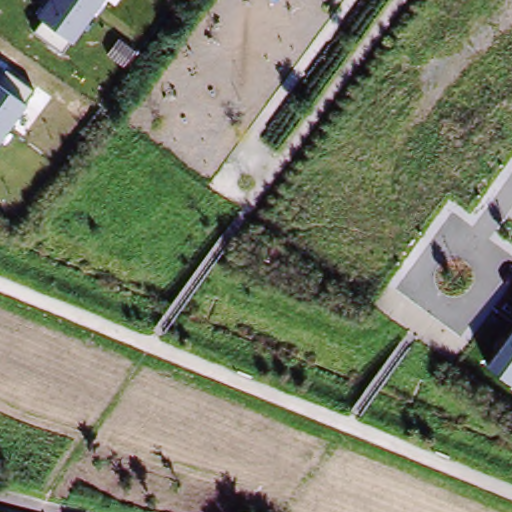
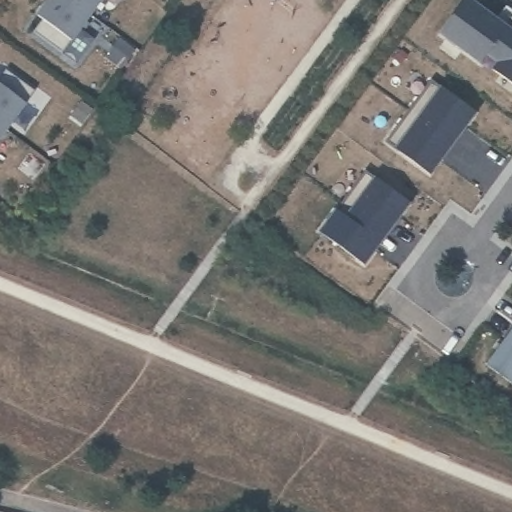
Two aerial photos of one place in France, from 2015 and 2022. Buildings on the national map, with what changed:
unchanged [(35,16),(46,0),(101,0),(62,52),(33,32),(42,22),(35,16)]
new [(468,2),(506,30),(506,31),(512,36),(512,83),(496,71),(493,74),(480,64),(482,61),(444,34),(468,2)]
unchanged [(25,101),(28,105),(0,143),(0,81),(6,70),(35,92),(25,101)]
new [(430,175),(388,143),(410,113),(432,83),(474,115),(462,132),(452,145),(443,158),(430,175)]
new [(363,265),(321,233),(343,203),(365,173),(408,205),(395,222),(386,235),(376,248),(363,265)]
unchanged [(512,332),(512,385),(487,368),(512,332)]

